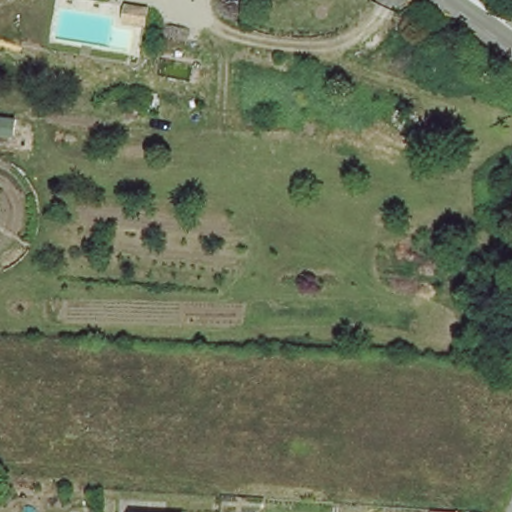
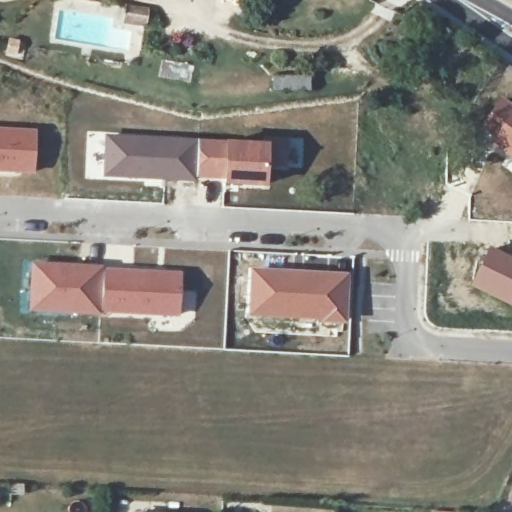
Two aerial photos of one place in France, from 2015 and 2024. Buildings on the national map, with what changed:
new [(311,74),(311,90),(273,90),(273,74),(311,74)]
new [(484,127),(501,102),(512,110),(512,155),(494,141),(497,137),(484,127)]
new [(0,171),(0,127),(36,129),(33,174),(0,171)]
new [(104,133),(148,134),(198,137),(196,179),(196,182),(102,178),(104,133)]
new [(198,137),(272,140),(268,187),(225,184),(225,181),(196,179),(198,137)]
new [(512,257),(512,307),(469,286),(488,246),(512,257)]
new [(101,312),(104,268),(180,272),(178,317),(101,312)]
new [(251,312),(254,271),(345,279),(343,320),(251,312)]

